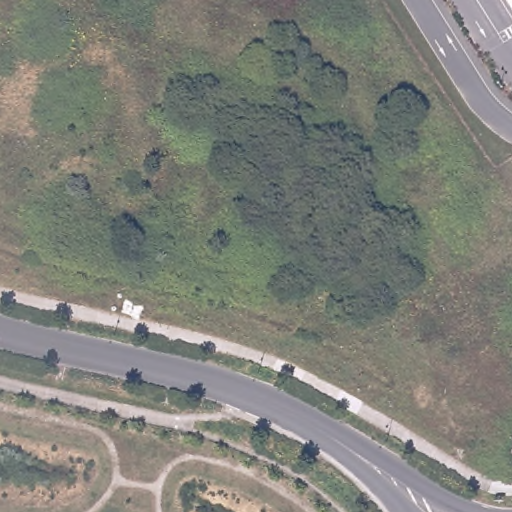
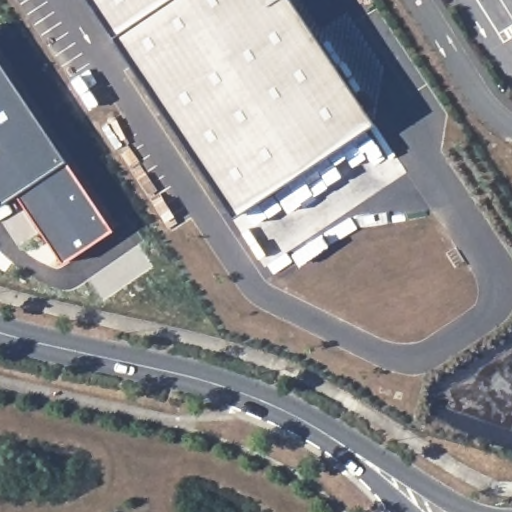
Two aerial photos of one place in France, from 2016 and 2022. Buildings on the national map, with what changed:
new [(85,0),(290,0),(370,120),(231,216),(85,0)]

